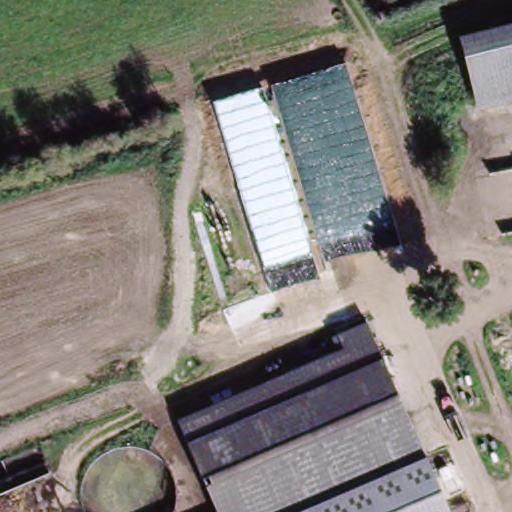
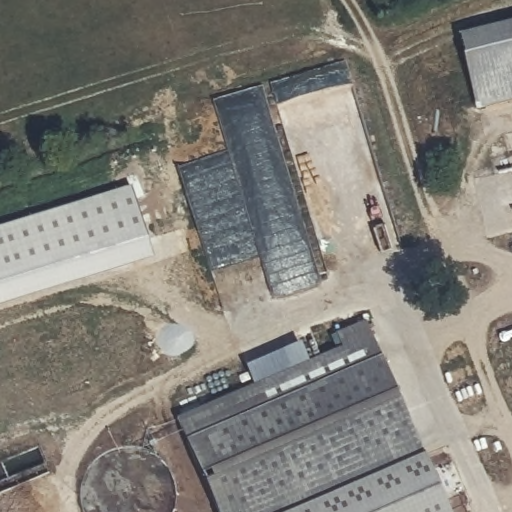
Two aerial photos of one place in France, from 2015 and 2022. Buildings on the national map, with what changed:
unchanged [(464,57),(459,38),(512,24),(512,45),(464,57)]
unchanged [(512,45),(512,99),(475,107),(464,57),(512,45)]
new [(155,259),(0,307),(0,225),(132,184),(155,259)]
new [(345,338),(350,351),(185,426),(181,428),(177,416),(255,384),(247,367),(302,342),(310,360),(336,349),(329,336),(365,318),(370,327),(345,338)]
unchanged [(185,426),(350,351),(345,338),(370,327),(385,363),(195,451),(185,426)]
unchanged [(221,512),(195,451),(385,363),(420,438),(256,512),(221,512)]
unchanged [(452,512),(288,512),(427,455),(452,512)]

